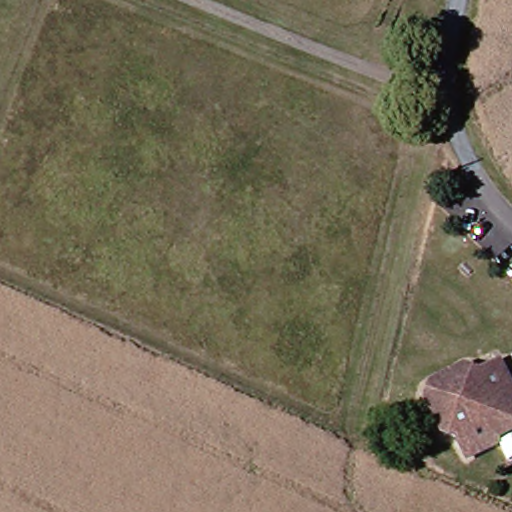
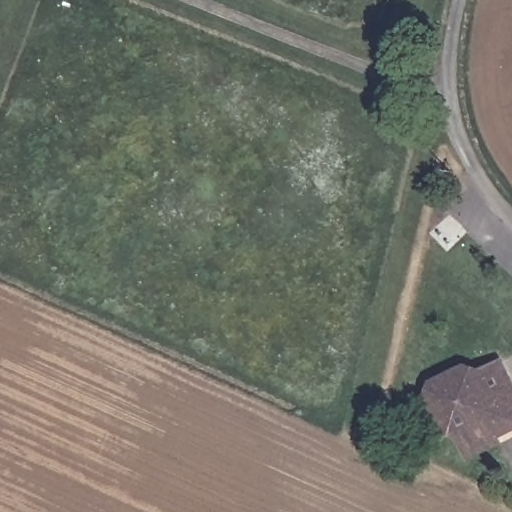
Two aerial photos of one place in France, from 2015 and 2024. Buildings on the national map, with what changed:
unchanged [(512,391),(512,396),(508,399),(512,406),(512,428),(493,437),(497,444),(463,460),(453,440),(437,435),(421,401),(426,388),(457,370),(471,376),(496,363),(512,391)]

